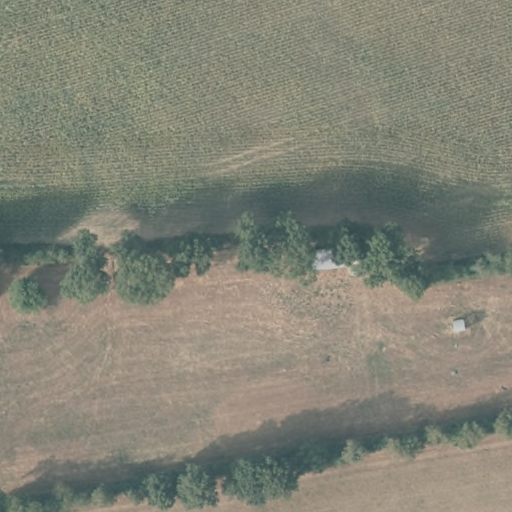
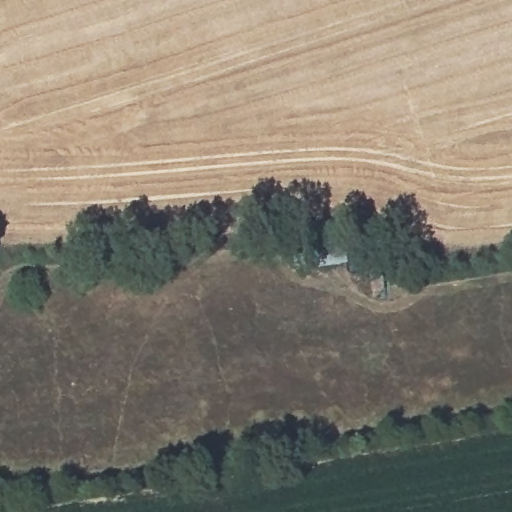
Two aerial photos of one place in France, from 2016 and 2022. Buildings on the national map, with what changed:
unchanged [(352,249),(347,265),(311,251),(317,237),(352,249)]

